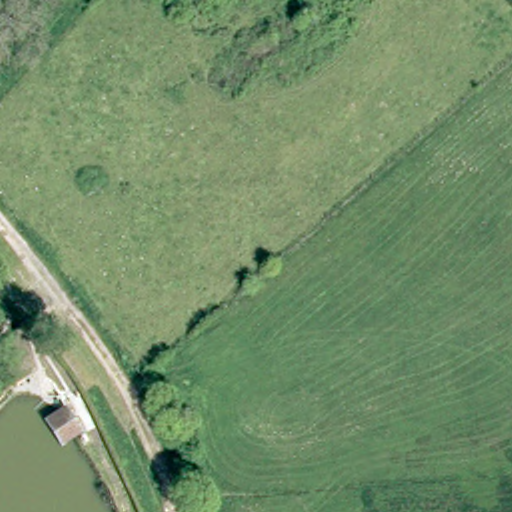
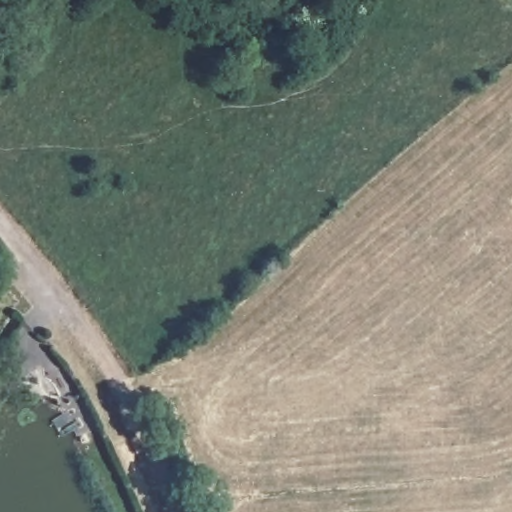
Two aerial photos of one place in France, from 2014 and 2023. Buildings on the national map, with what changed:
unchanged [(46,408),(60,399),(65,396),(78,415),(71,419),(58,426),(46,408)]

